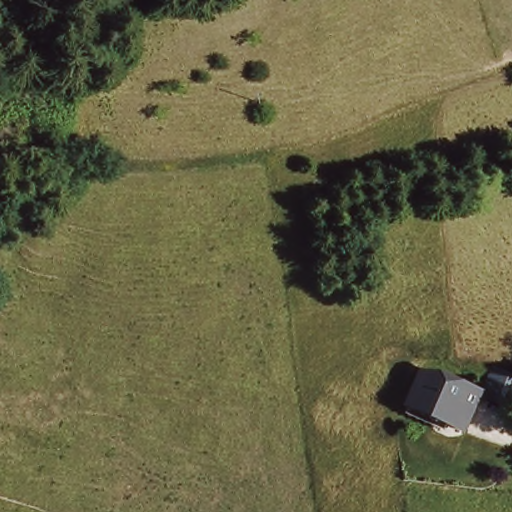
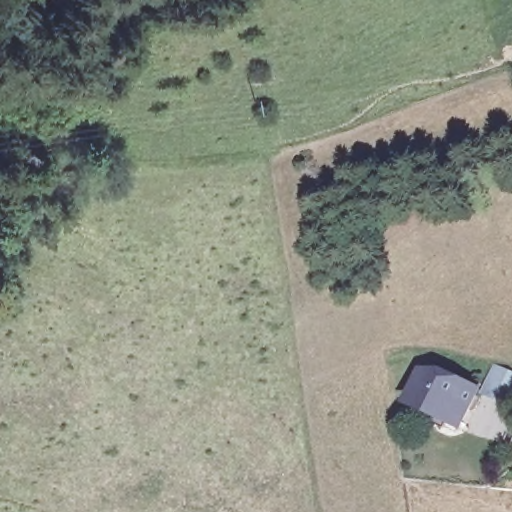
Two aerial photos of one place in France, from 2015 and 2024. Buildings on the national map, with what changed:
unchanged [(477,404),(465,433),(431,418),(444,390),(477,404)]

